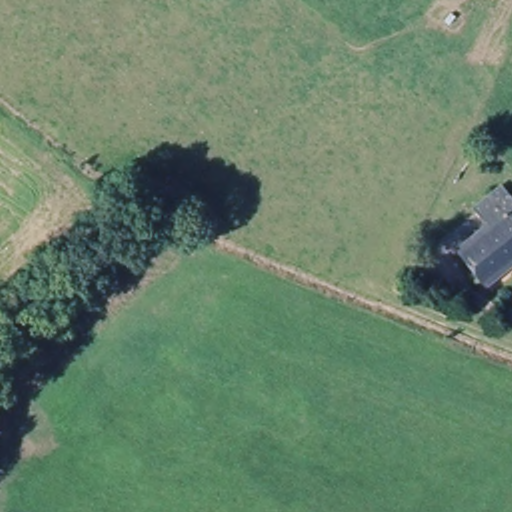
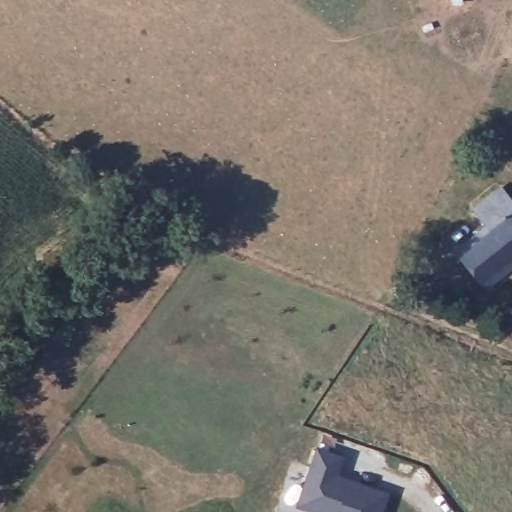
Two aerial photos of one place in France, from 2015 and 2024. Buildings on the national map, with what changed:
unchanged [(461,259),(487,235),(475,218),(498,198),(512,213),(512,272),(488,292),(461,259)]
new [(345,456),(338,476),(389,493),(382,512),(312,512),(295,506),(316,447),(345,456)]

